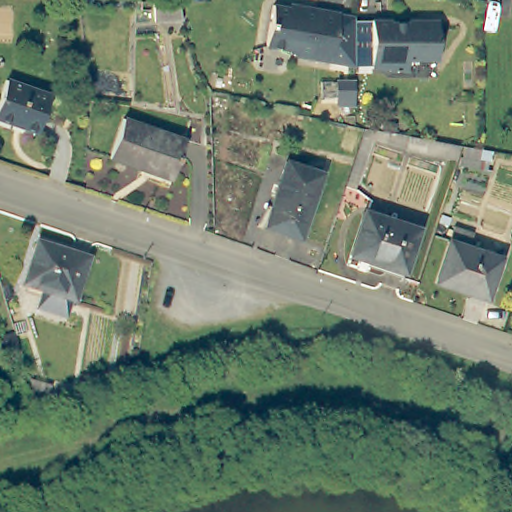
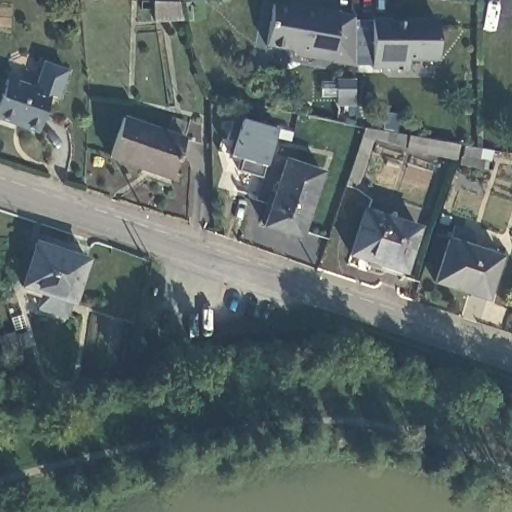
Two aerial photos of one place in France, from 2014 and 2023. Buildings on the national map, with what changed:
unchanged [(182,2),(187,21),(160,21),(157,2),(182,2)]
unchanged [(297,55),(293,49),(268,45),(275,4),(301,9),(302,5),(341,12),(333,61),(297,55)]
unchanged [(393,19),(393,21),(440,22),(439,59),(410,59),(410,70),(392,70),(392,67),(374,67),(374,19),(393,19)]
unchanged [(50,95),(33,89),(43,61),(69,70),(58,98),(50,95)]
unchanged [(45,114),(38,132),(0,118),(0,103),(8,80),(50,95),(45,114)]
unchanged [(339,105),(339,97),(323,97),(323,82),(356,82),(356,98),(356,106),(339,105)]
new [(238,171),(242,159),(230,156),(242,118),(280,130),(263,177),(238,171)]
unchanged [(183,142),(178,156),(170,180),(109,159),(122,121),(183,142)]
unchanged [(459,154),(457,158),(406,148),(408,132),(462,142),(480,147),(475,160),(459,154)]
unchanged [(299,235),(263,222),(287,159),(321,170),(299,235)]
unchanged [(399,269),(349,251),(363,210),(415,227),(399,269)]
unchanged [(485,297),(432,278),(450,223),(471,230),(467,244),(500,256),(485,297)]
unchanged [(37,307),(41,292),(22,286),(34,242),(85,257),(72,301),(70,300),(66,316),(37,307)]
unchanged [(44,400),(23,398),(25,377),(46,379),(44,400)]

